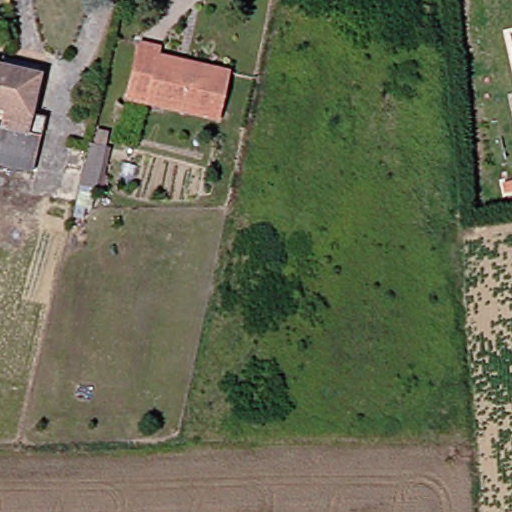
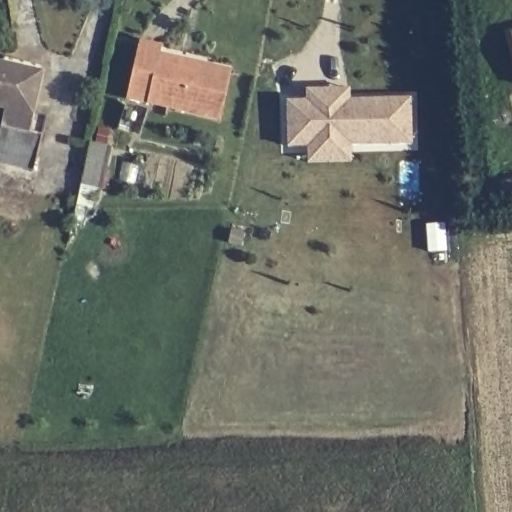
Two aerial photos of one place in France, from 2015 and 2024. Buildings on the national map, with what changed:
unchanged [(143,48),(163,54),(162,61),(233,77),(222,123),(131,103),(143,48)]
unchanged [(3,136),(8,113),(0,111),(0,69),(44,78),(35,122),(47,125),(35,177),(0,168),(0,135),(3,136)]
new [(307,101),(306,90),(349,88),(349,99),(410,97),(411,144),(350,146),(350,161),(307,162),(306,146),(287,146),(286,102),(307,101)]
unchanged [(94,144),(98,127),(108,130),(106,145),(111,146),(101,190),(95,189),(91,209),(85,209),(84,216),(74,214),(89,142),(94,144)]

